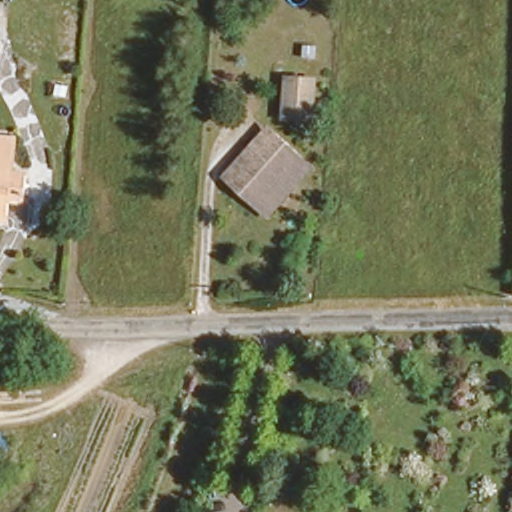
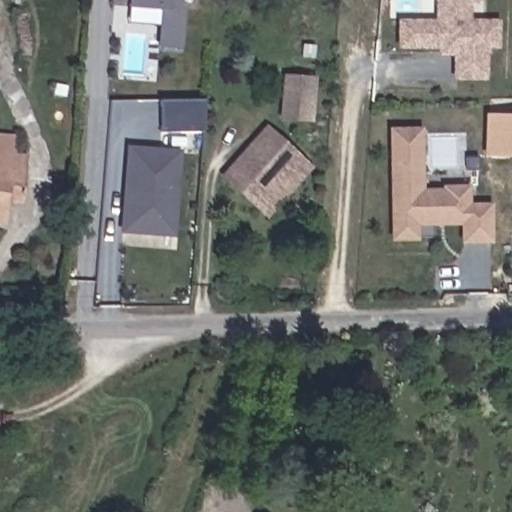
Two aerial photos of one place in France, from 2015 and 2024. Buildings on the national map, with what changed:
new [(163,50),(164,25),(133,21),(136,0),(185,0),(185,5),(189,6),(186,52),(163,50)]
new [(487,45),(487,52),(444,52),(444,45),(402,48),(400,24),(441,22),(442,0),(472,0),(471,21),(500,22),(499,45),(487,45)]
new [(458,76),(458,52),(487,52),(487,77),(458,76)]
new [(314,76),(313,115),(286,115),(287,75),(314,76)]
new [(483,157),(485,114),(512,114),(512,158),(483,157)]
unchanged [(266,125),(291,145),(301,154),(262,205),(248,193),(226,176),(250,146),(255,139),(266,125)]
new [(463,242),(462,224),(445,224),(445,220),(415,221),(415,238),(393,239),(393,131),(420,130),(422,192),(445,191),(446,189),(467,188),(467,207),(489,207),(489,241),(463,242)]
unchanged [(0,132),(7,132),(6,170),(21,171),(20,193),(5,192),(4,208),(1,208),(1,214),(0,214),(0,132)]
new [(158,235),(128,234),(131,152),(181,153),(179,217),(178,235),(158,235)]

